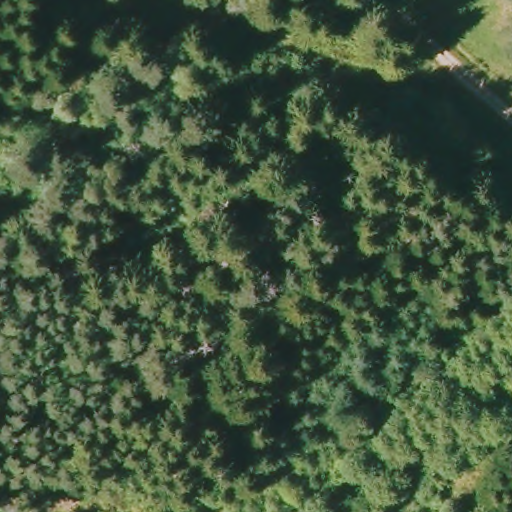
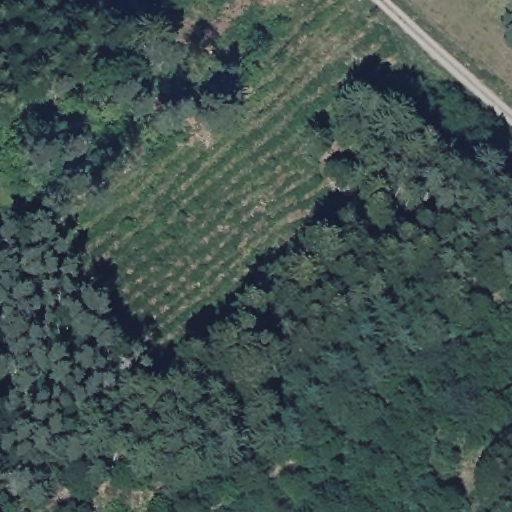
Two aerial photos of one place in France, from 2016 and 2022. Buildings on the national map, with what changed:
unchanged [(458,91),(445,106),(414,83),(430,69),(458,91)]

